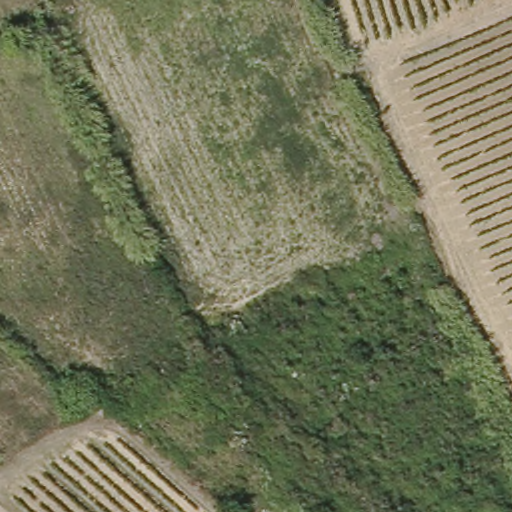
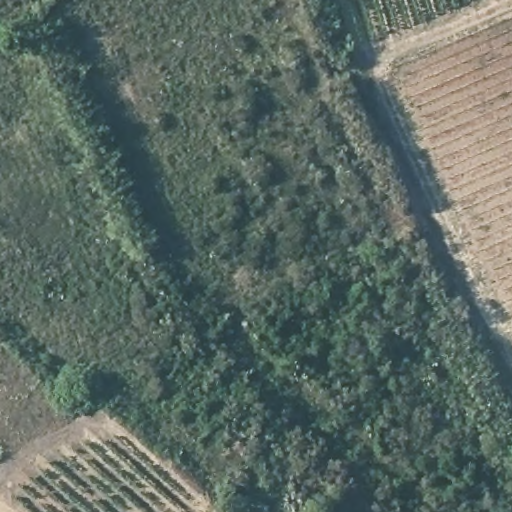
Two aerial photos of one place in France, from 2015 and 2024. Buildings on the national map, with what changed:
[]

